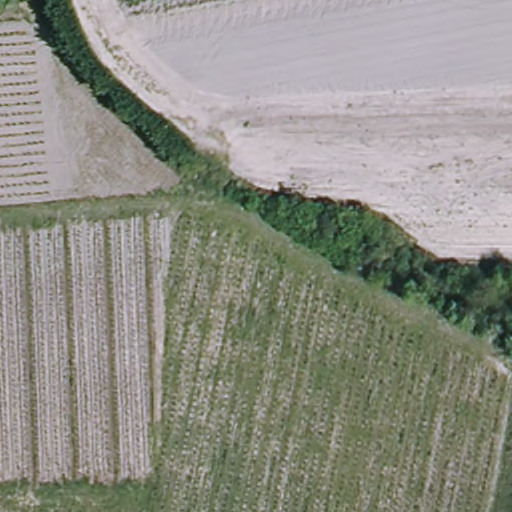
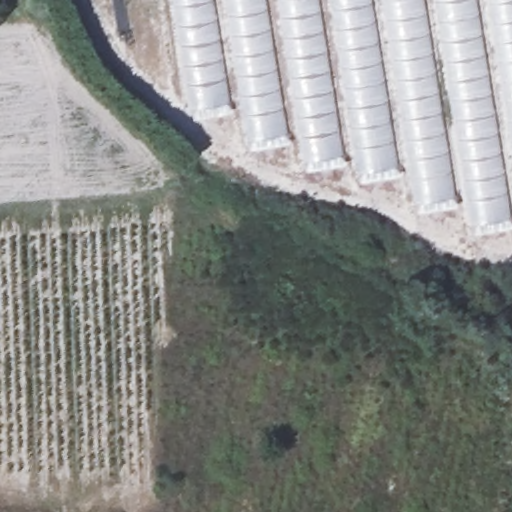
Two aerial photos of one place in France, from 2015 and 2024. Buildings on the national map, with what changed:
new [(472,192),(419,201),(413,162),(363,171),(359,149),(309,159),(303,130),(251,141),(243,97),(195,107),(177,0),(512,0),(512,215),(476,222),(472,192)]

